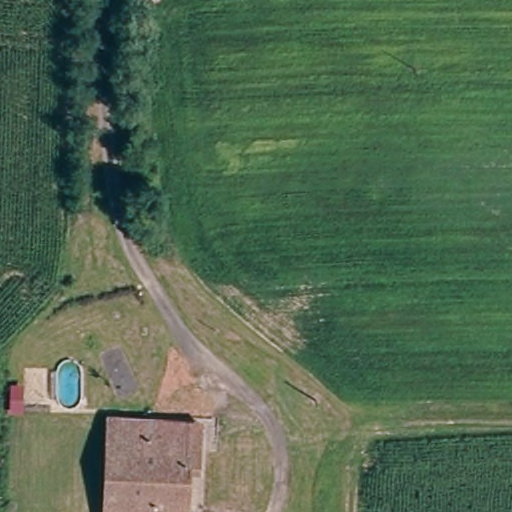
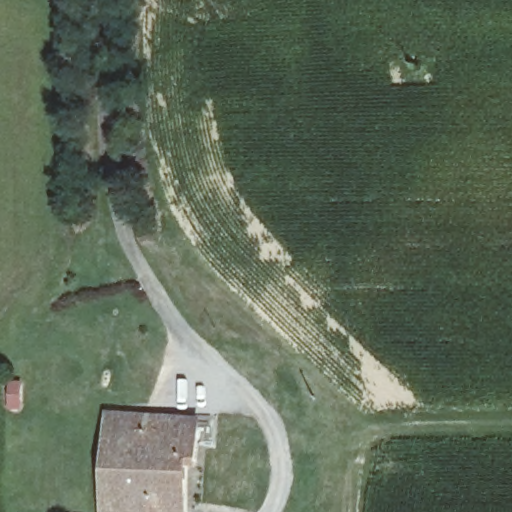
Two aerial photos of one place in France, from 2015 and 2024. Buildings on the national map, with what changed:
unchanged [(180,460),(107,455),(111,410),(198,419),(194,461),(180,460)]
unchanged [(101,512),(107,455),(180,460),(177,512),(101,512)]

